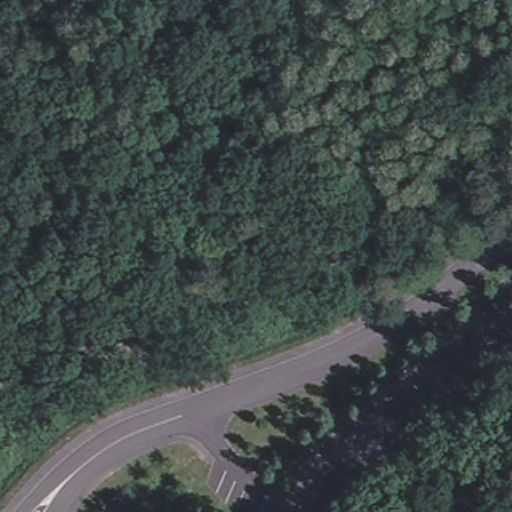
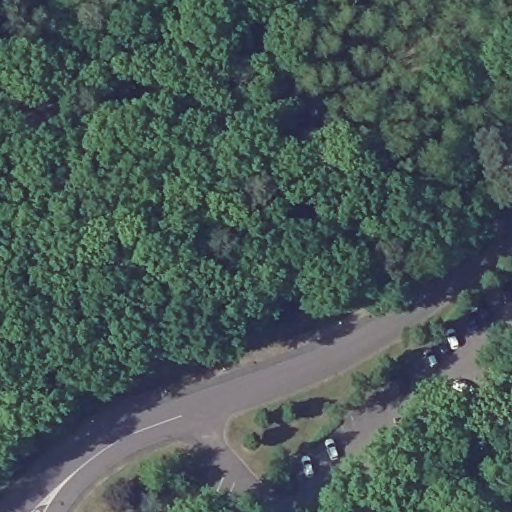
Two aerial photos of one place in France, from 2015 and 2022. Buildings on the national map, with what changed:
[]

